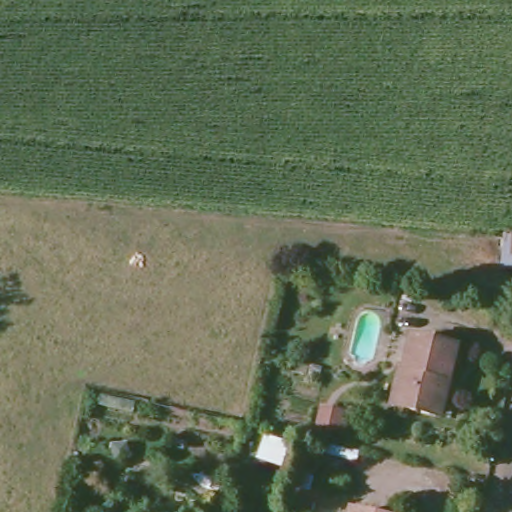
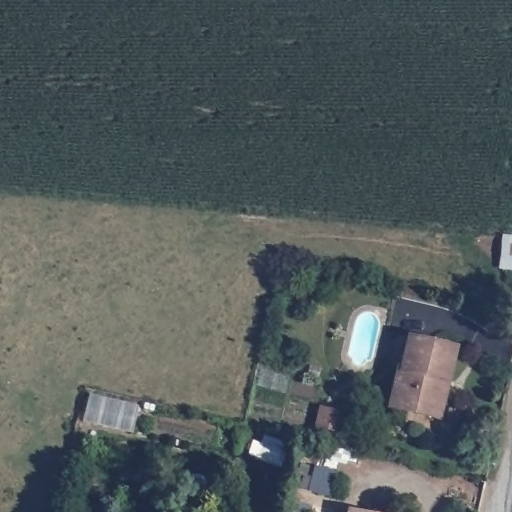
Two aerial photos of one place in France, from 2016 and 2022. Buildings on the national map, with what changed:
unchanged [(503,235),(512,236),(512,272),(503,271),(503,235)]
unchanged [(461,348),(453,381),(443,378),(434,417),(394,407),(403,368),(406,369),(414,337),(461,348)]
unchanged [(342,416),(338,430),(315,424),(318,410),(342,416)]
unchanged [(311,505),(310,512),(289,512),(291,501),(311,505)]
unchanged [(355,512),(355,511),(360,512),(355,512)]

